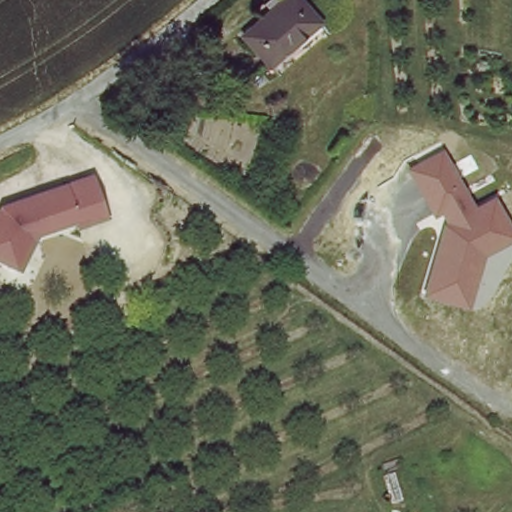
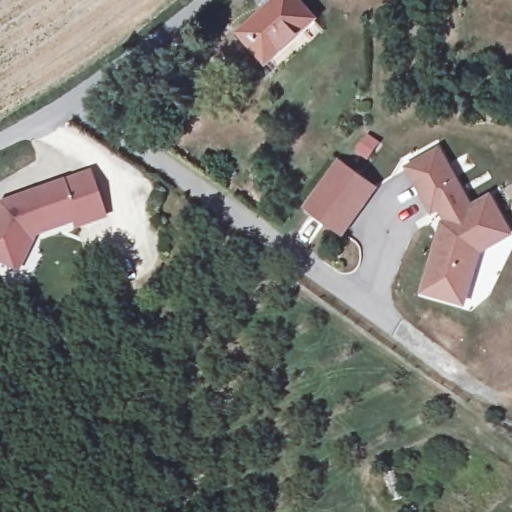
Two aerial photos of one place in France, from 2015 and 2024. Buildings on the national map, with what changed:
unchanged [(271,61),(246,35),(284,0),(302,0),(319,18),(271,61)]
unchanged [(464,196),(456,201),(462,215),(490,201),(507,239),(477,254),(461,311),(423,299),(436,242),(447,229),(440,209),(433,214),(406,170),(440,154),(464,196)]
new [(343,236),(303,208),(337,159),(378,188),(343,236)]
unchanged [(75,227),(38,240),(22,274),(0,264),(0,201),(95,172),(109,222),(77,231),(75,227)]

